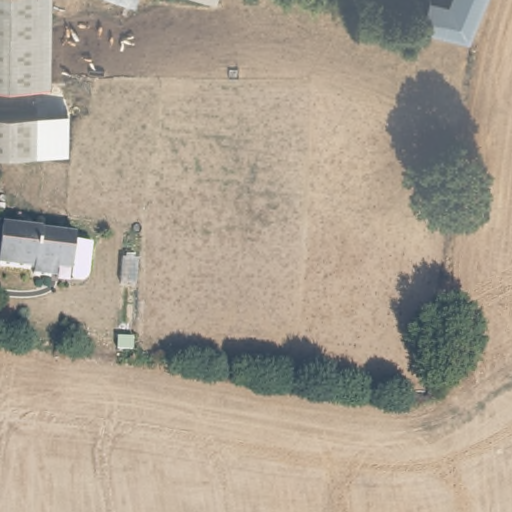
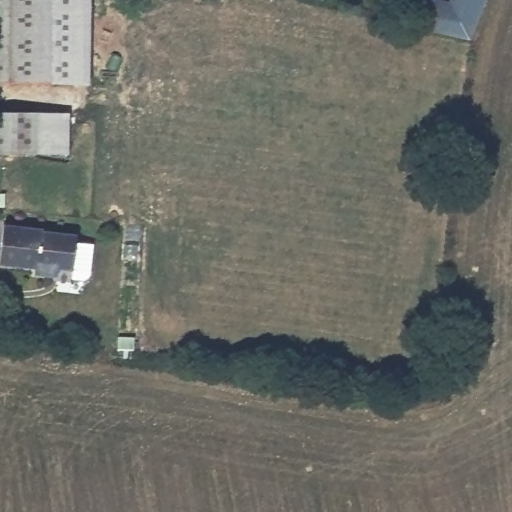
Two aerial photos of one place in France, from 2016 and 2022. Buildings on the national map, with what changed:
unchanged [(0,0),(50,0),(50,82),(0,81),(0,0)]
new [(50,82),(50,0),(91,0),(91,85),(50,82)]
unchanged [(419,31),(425,0),(432,0),(451,4),(452,0),(483,0),(471,42),(419,31)]
unchanged [(0,154),(0,116),(70,114),(68,155),(0,154)]
unchanged [(40,228),(75,232),(74,244),(85,245),(89,250),(86,272),(81,276),(70,275),(71,268),(49,265),(48,273),(31,270),(31,264),(0,260),(0,225),(1,220),(40,225),(40,228)]

